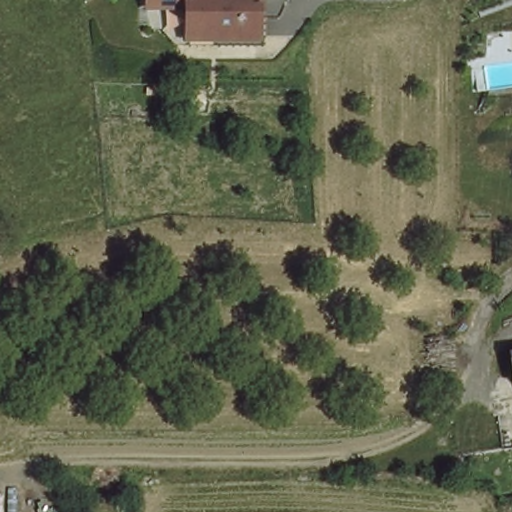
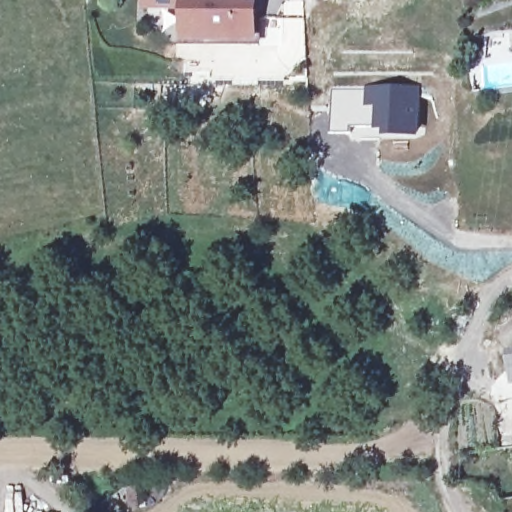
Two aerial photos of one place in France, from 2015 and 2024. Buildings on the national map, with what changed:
unchanged [(182,33),(182,0),(251,0),(251,5),(251,33),(182,33)]
new [(330,87),(420,84),(419,136),(330,133),(330,87)]
unchanged [(509,356),(512,356),(512,379),(509,356)]

